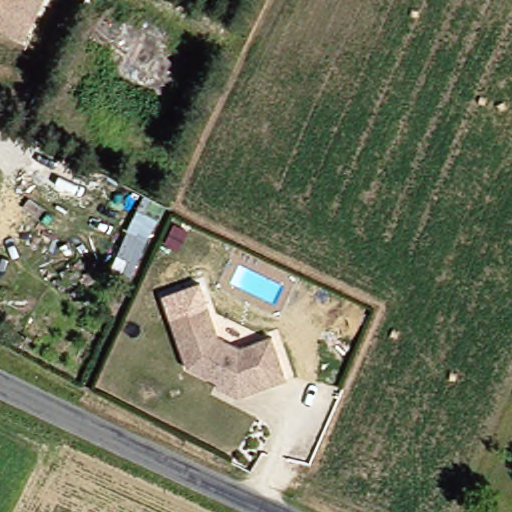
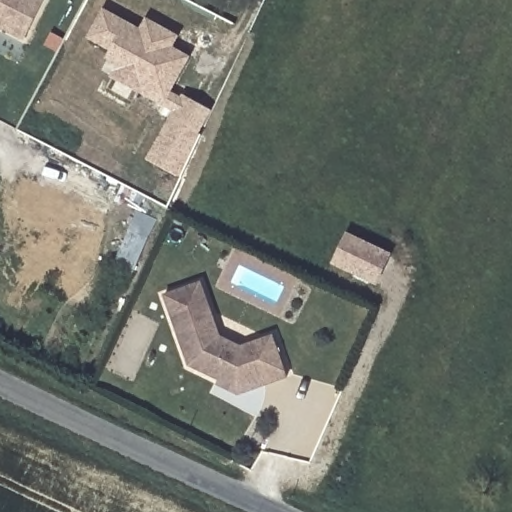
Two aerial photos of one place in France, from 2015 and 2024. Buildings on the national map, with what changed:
unchanged [(22,36),(0,25),(0,0),(41,0),(22,36)]
new [(142,33),(148,22),(178,38),(172,49),(190,59),(168,100),(143,88),(140,93),(114,79),(125,59),(90,40),(105,12),(142,33)]
new [(180,99),(210,115),(199,138),(180,179),(147,161),(169,120),(180,99)]
new [(157,221),(134,275),(122,272),(125,263),(117,261),(137,212),(157,221)]
new [(348,236),(390,256),(376,285),(333,264),(348,236)]
unchanged [(202,306),(215,340),(236,349),(267,338),(281,380),(232,397),(215,387),(217,382),(187,368),(168,319),(202,306)]

